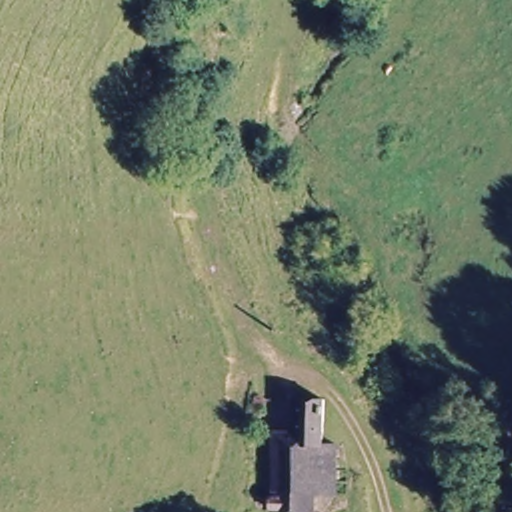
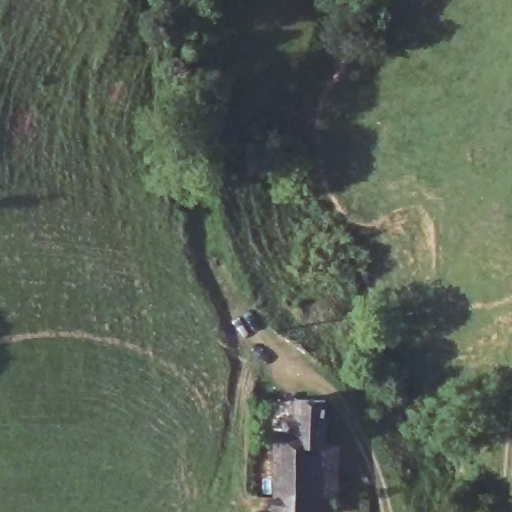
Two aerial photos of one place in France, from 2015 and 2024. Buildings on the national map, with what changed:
unchanged [(323,449),(336,451),(334,502),(312,499),(311,512),(270,512),(274,438),(295,439),(297,407),(324,407),(323,449)]

